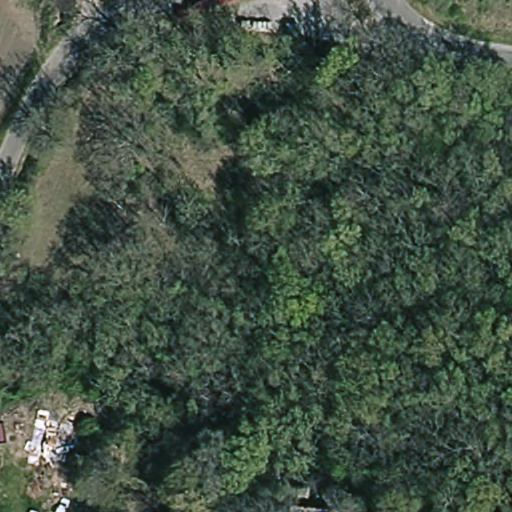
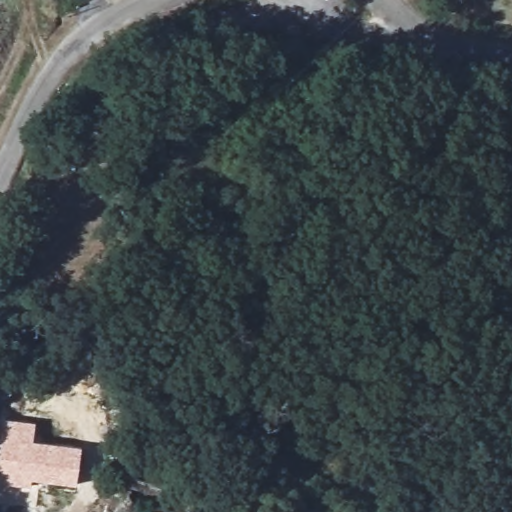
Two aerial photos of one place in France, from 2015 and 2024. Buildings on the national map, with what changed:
new [(82,446),(77,485),(32,480),(30,488),(0,481),(0,454),(5,417),(35,422),(33,440),(82,446)]

